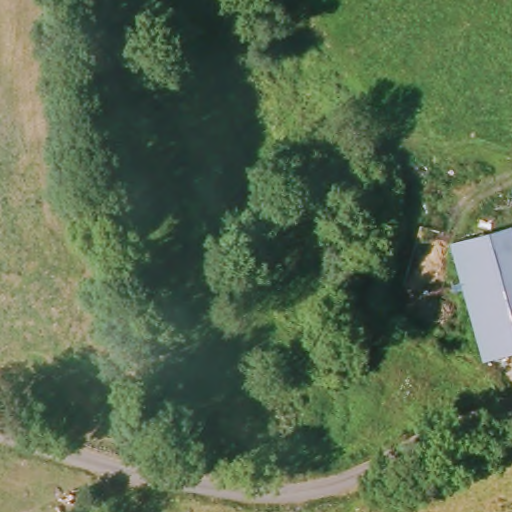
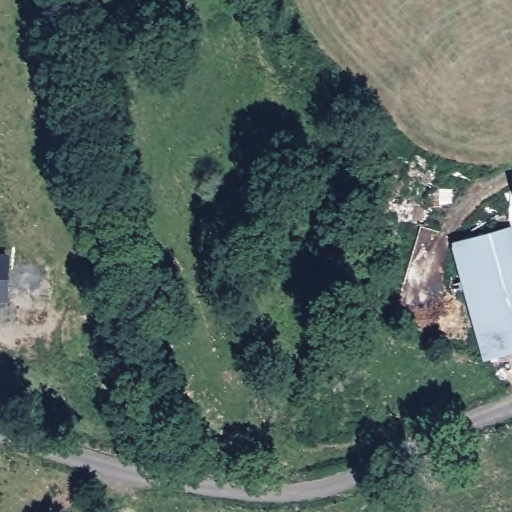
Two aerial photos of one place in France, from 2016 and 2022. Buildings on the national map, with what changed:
unchanged [(458,246),(512,231),(512,353),(488,359),(458,246)]
new [(8,254),(7,301),(0,301),(0,253),(8,254)]

